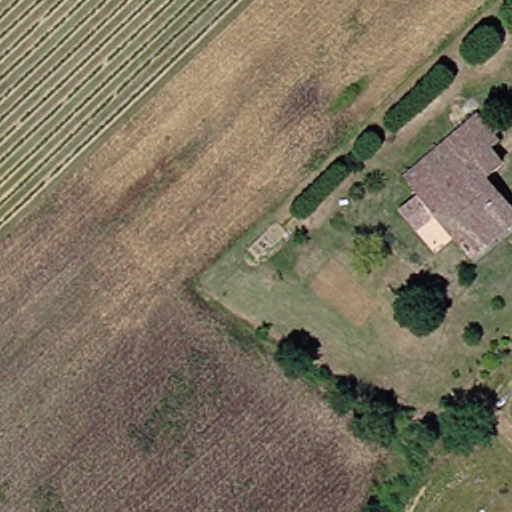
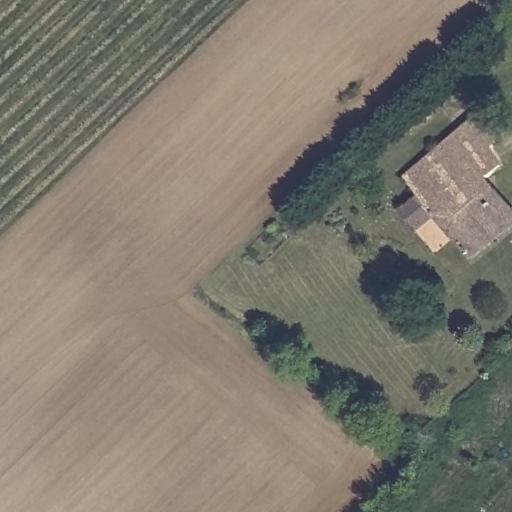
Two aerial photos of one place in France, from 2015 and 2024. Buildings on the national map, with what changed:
unchanged [(414,197),(394,178),(466,112),(475,123),(483,116),(490,125),(482,131),(490,141),(479,151),(492,165),(475,181),(509,219),(472,253),(476,257),(468,265),(414,197)]

